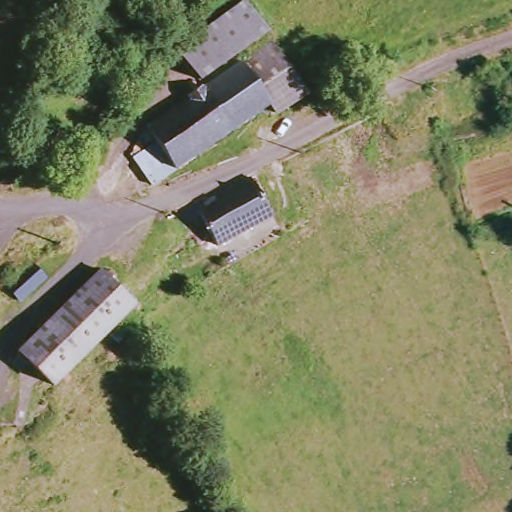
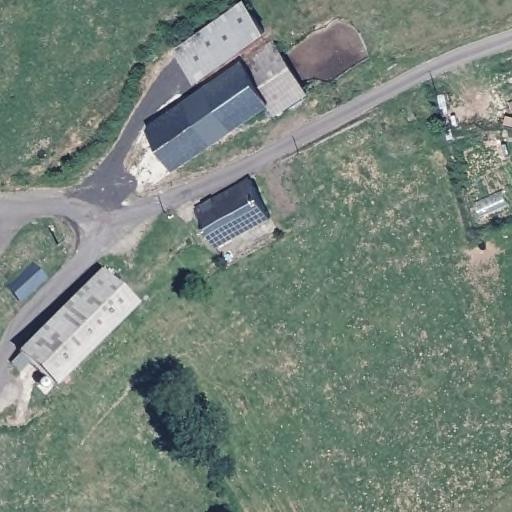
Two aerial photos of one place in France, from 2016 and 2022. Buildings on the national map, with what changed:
unchanged [(232,54),(212,24),(242,3),(265,36),(234,57),(232,54)]
unchanged [(232,54),(194,82),(172,51),(212,24),(232,54)]
unchanged [(273,46),(306,97),(274,117),(265,103),(241,68),(273,46)]
unchanged [(265,103),(178,162),(151,123),(238,63),(241,68),(265,103)]
unchanged [(157,178),(135,148),(149,120),(151,123),(178,162),(157,178)]
unchanged [(214,252),(195,217),(249,186),(268,220),(214,252)]
unchanged [(92,258),(93,257),(137,307),(131,312),(127,306),(61,375),(52,383),(30,361),(20,370),(13,363),(19,349),(98,266),(92,258)]
unchanged [(20,309),(5,294),(30,271),(43,286),(20,309)]

